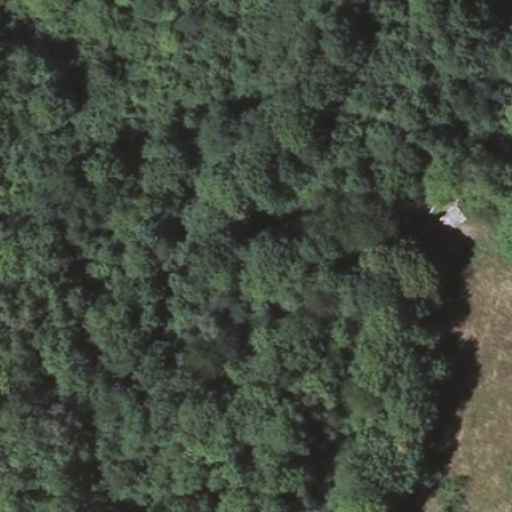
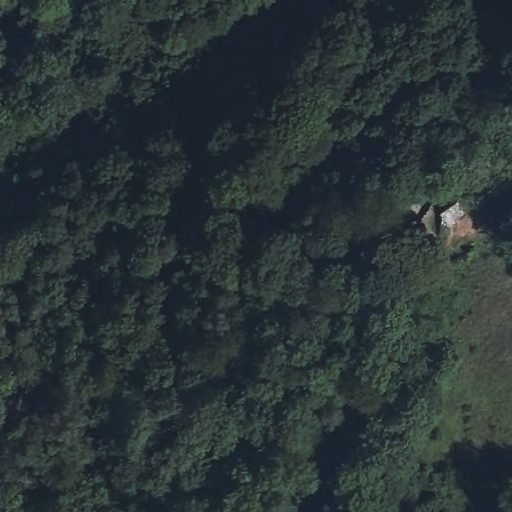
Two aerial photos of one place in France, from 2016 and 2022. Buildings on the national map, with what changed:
unchanged [(471,189),(500,220),(467,246),(438,215),(471,189)]

